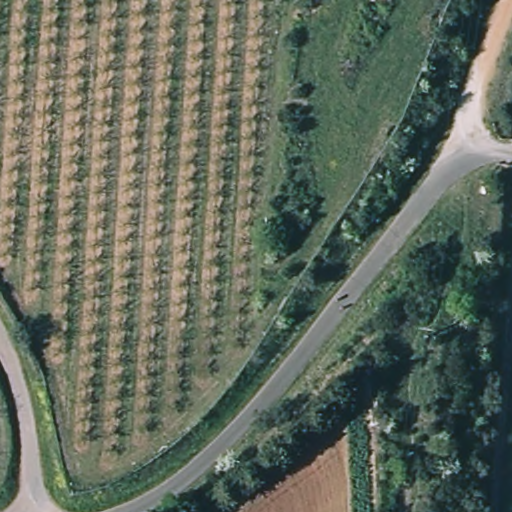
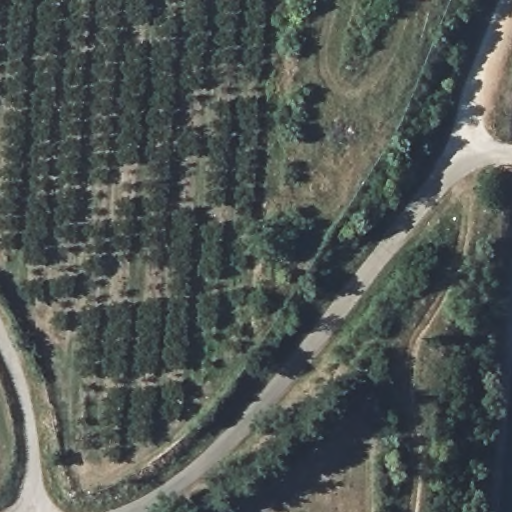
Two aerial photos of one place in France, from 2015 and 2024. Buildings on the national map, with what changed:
[]

